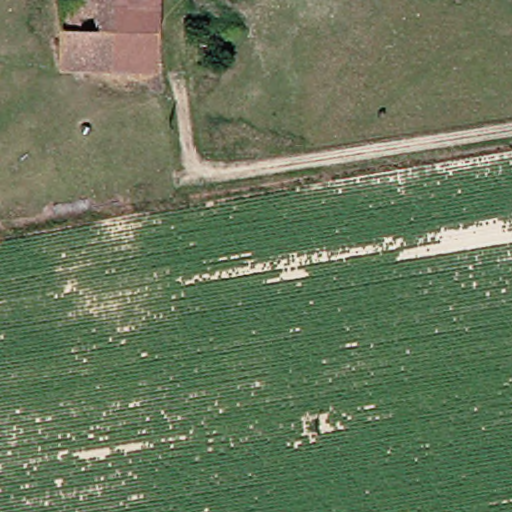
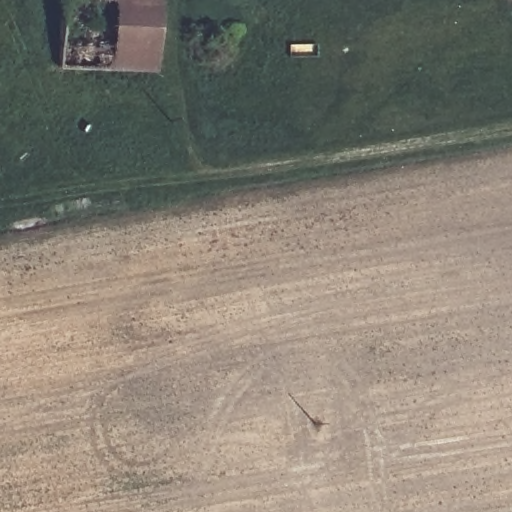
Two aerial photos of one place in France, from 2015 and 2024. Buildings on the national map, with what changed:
unchanged [(52,65),(57,0),(154,0),(150,70),(52,65)]

